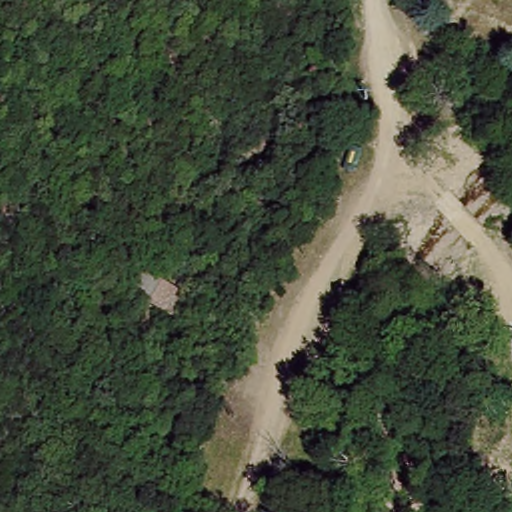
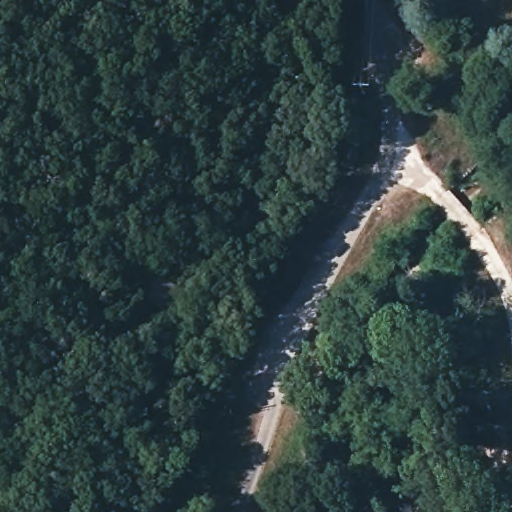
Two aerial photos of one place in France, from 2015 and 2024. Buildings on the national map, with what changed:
unchanged [(165,311),(142,300),(156,273),(182,284),(165,311)]

